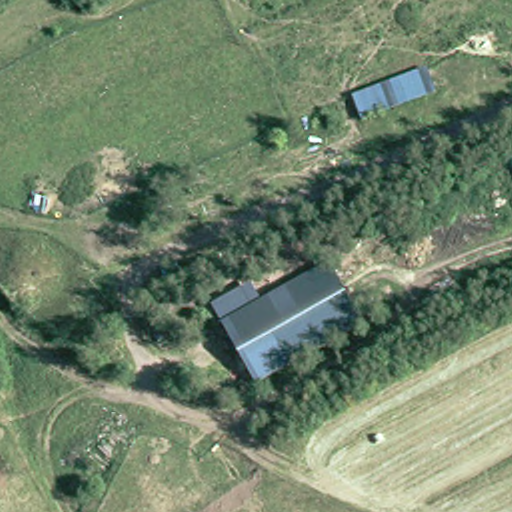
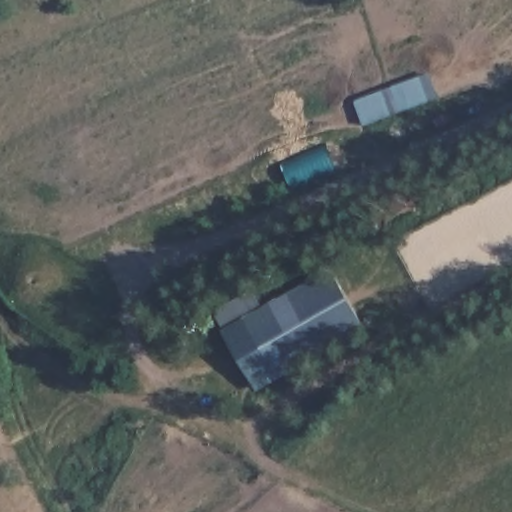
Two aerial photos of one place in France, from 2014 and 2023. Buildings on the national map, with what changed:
unchanged [(425,71),(433,98),(357,125),(350,102),(425,71)]
unchanged [(228,350),(218,333),(325,269),(340,293),(360,327),(252,391),(228,350)]

